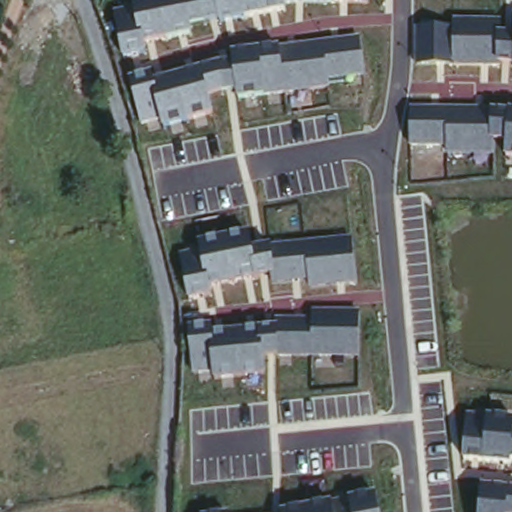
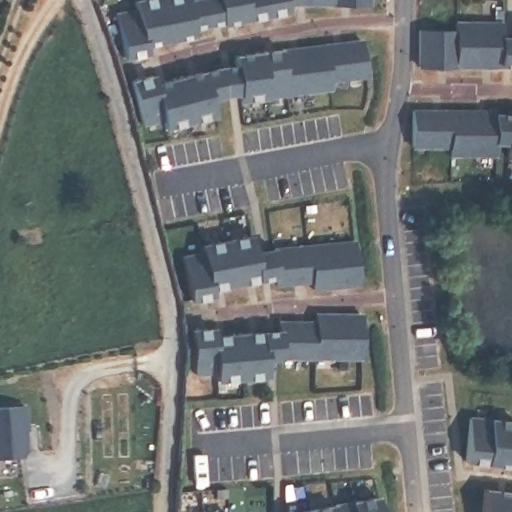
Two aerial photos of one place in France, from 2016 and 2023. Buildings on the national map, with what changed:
unchanged [(190,35),(146,42),(147,52),(125,57),(118,14),(138,11),(136,0),(184,0),(190,35)]
unchanged [(371,4),(286,4),(287,11),(225,26),(220,0),(370,0),(371,4)]
unchanged [(457,31),(457,22),(501,23),(501,36),(512,39),(512,67),(501,65),(419,64),(421,30),(457,31)]
unchanged [(368,76),(330,82),(330,89),(289,95),(243,101),(240,93),(210,100),(214,114),(165,127),(163,117),(143,123),(134,83),(154,76),(156,85),(203,72),(236,64),(235,57),(361,41),(368,76)]
unchanged [(494,112),(512,114),(512,158),(508,157),(509,143),(494,142),(494,155),(450,154),(451,146),(414,145),(416,110),(494,112)]
unchanged [(360,283),(314,288),(313,281),(275,284),(274,275),(212,287),(214,297),(192,300),(182,256),(203,251),(202,245),(250,235),(254,251),(272,249),(354,243),(360,283)]
unchanged [(213,329),(214,337),(279,329),(279,322),(314,323),(315,315),(362,315),(361,359),(282,356),(267,356),(267,375),(217,381),(215,373),(196,376),(193,331),(213,329)]
new [(24,461),(0,460),(0,404),(24,403),(24,461)]
unchanged [(512,421),(512,465),(465,461),(469,416),(512,421)]
unchanged [(478,512),(481,486),(512,489),(512,512),(478,512)]
unchanged [(281,512),(381,492),(385,512),(281,512)]
unchanged [(234,512),(231,512),(234,511),(234,512)]

